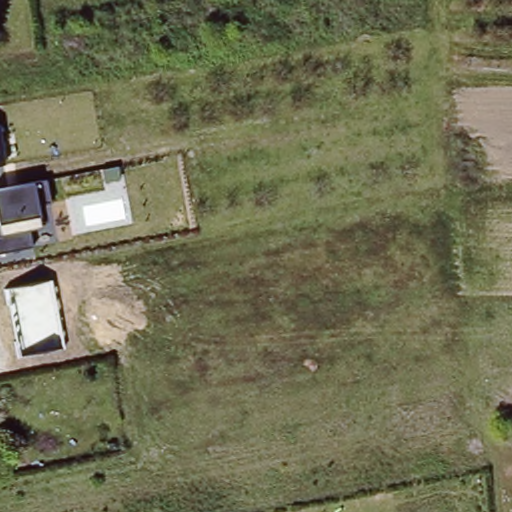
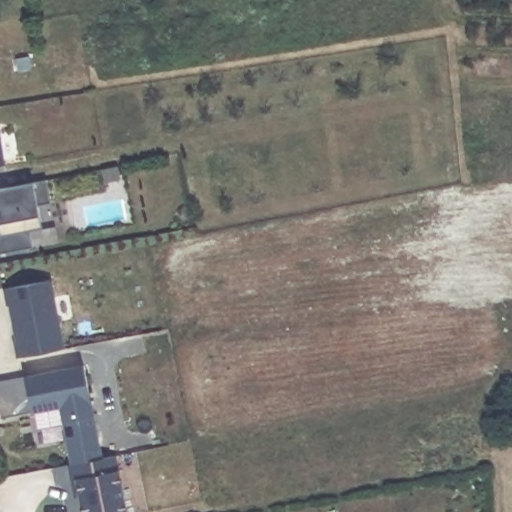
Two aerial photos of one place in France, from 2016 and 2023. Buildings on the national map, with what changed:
unchanged [(4,163),(0,164),(0,137),(4,163)]
unchanged [(33,182),(43,179),(48,203),(38,206),(39,214),(39,228),(27,231),(29,250),(0,255),(0,236),(0,188),(33,182)]
unchanged [(51,280),(64,348),(16,358),(3,288),(51,280)]
new [(86,367),(104,459),(74,465),(63,407),(34,413),(27,378),(86,367)]
new [(27,378),(34,413),(4,418),(0,395),(0,384),(27,378)]
new [(104,459),(116,457),(119,456),(130,512),(85,512),(82,497),(77,497),(71,466),(74,465),(104,459)]

